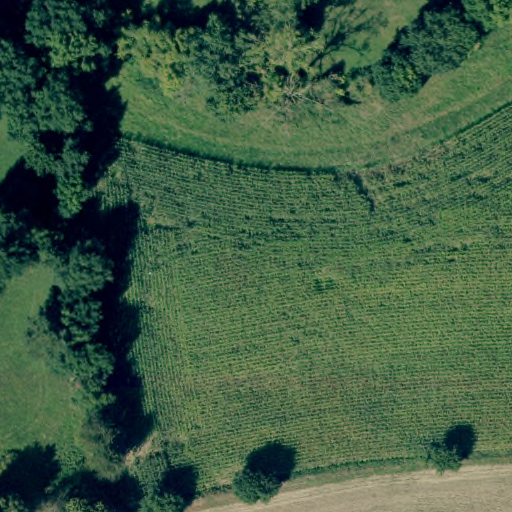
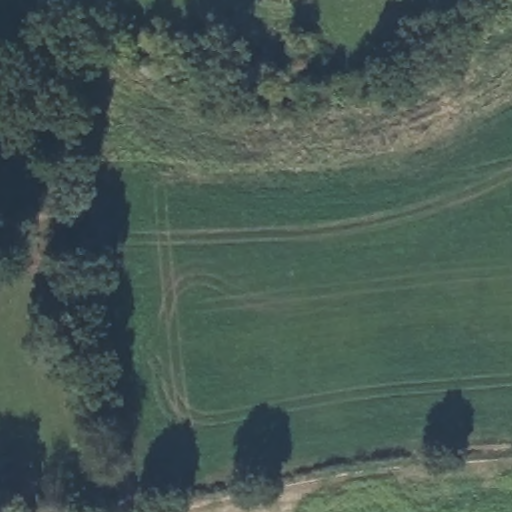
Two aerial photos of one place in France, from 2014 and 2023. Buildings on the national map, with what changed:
[]

